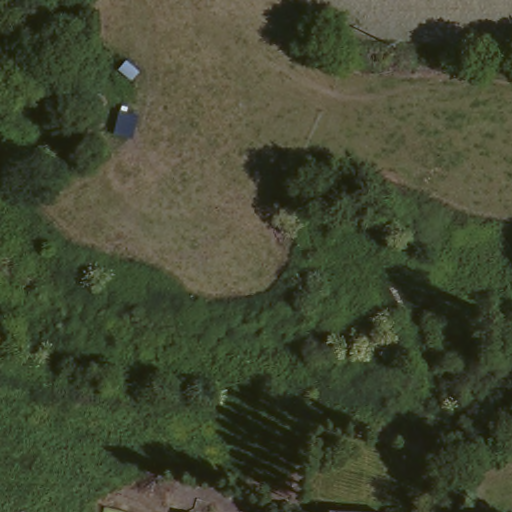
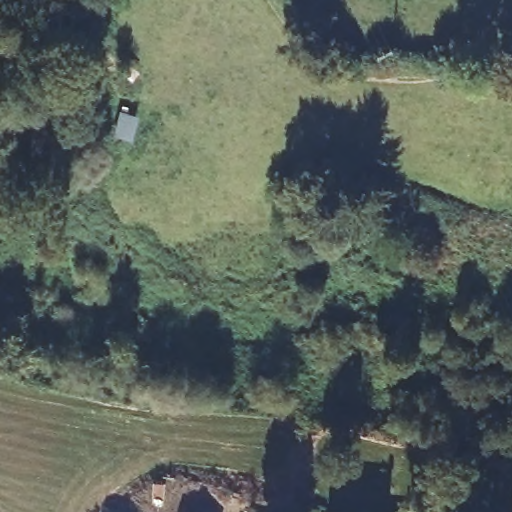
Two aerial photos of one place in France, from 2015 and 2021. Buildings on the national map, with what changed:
unchanged [(332,512),(332,504),(396,512),(332,512)]

